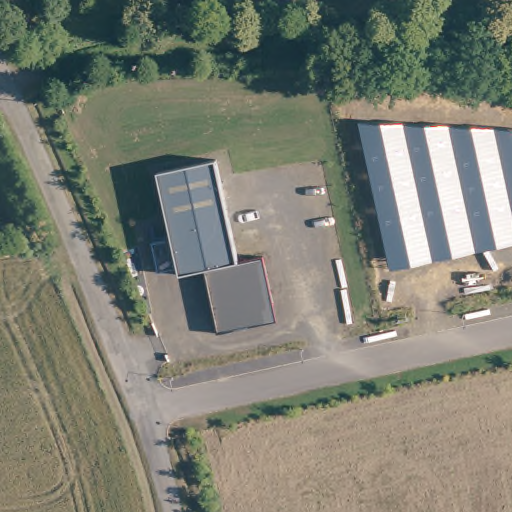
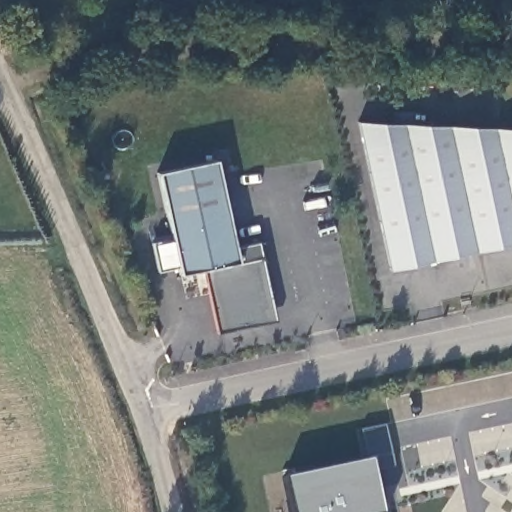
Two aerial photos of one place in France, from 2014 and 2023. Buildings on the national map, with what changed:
unchanged [(361,121),(512,128),(512,244),(393,271),(361,121)]
unchanged [(219,165),(241,267),(266,262),(277,312),(265,330),(221,339),(207,275),(182,281),(181,273),(161,277),(155,247),(174,244),(160,177),(219,165)]
new [(358,432),(383,427),(389,456),(382,457),(370,460),(373,473),(381,512),(287,512),(280,480),(365,462),(358,432)]

